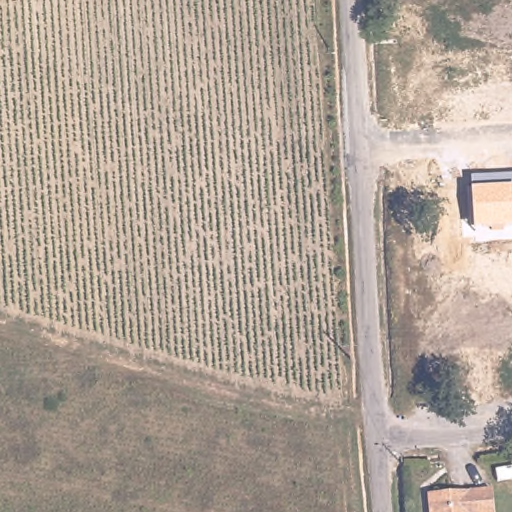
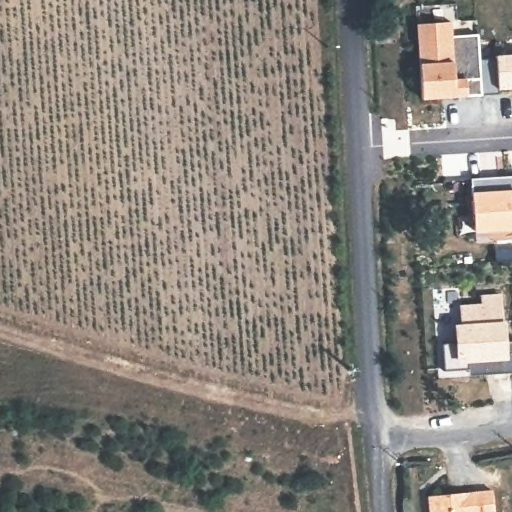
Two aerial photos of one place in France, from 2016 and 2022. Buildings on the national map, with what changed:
new [(454,27),(455,42),(481,40),(485,101),(457,102),(457,97),(445,99),(446,104),(425,105),(420,30),(454,27)]
new [(482,61),(497,60),(496,55),(512,54),(512,89),(498,90),(499,94),(484,95),(482,61)]
unchanged [(477,236),(475,195),(473,182),(512,179),(512,233),(477,236)]
new [(470,376),(469,370),(446,370),(445,351),(454,350),(453,325),(460,323),(460,305),(482,303),(481,295),(501,294),(505,343),(512,343),(512,372),(470,376)]
unchanged [(433,490),(488,485),(497,483),(500,510),(491,510),(478,512),(435,512),(433,490)]

